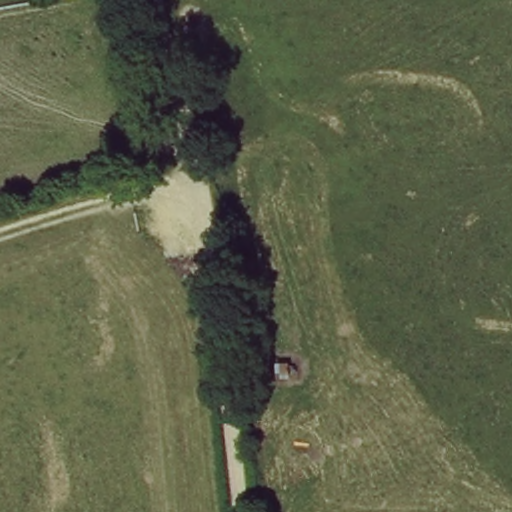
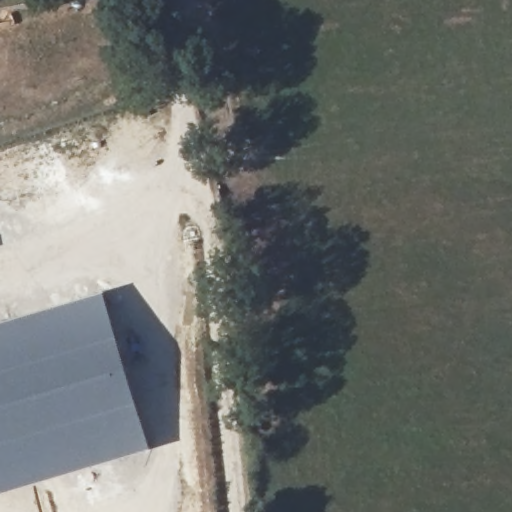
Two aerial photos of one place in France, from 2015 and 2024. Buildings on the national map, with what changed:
new [(103,292),(126,364),(150,448),(0,492),(0,322),(103,292)]
unchanged [(244,369),(269,366),(275,422),(251,425),(244,369)]

